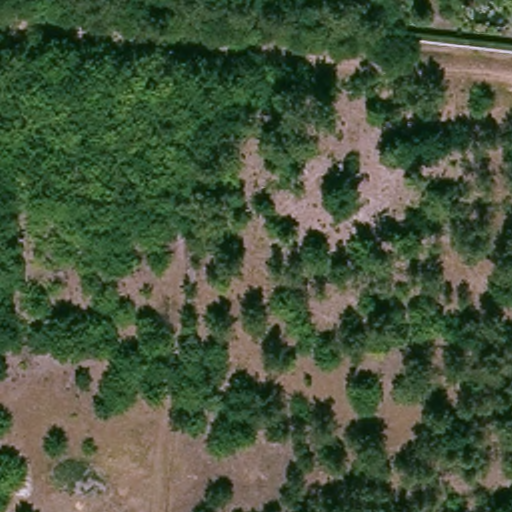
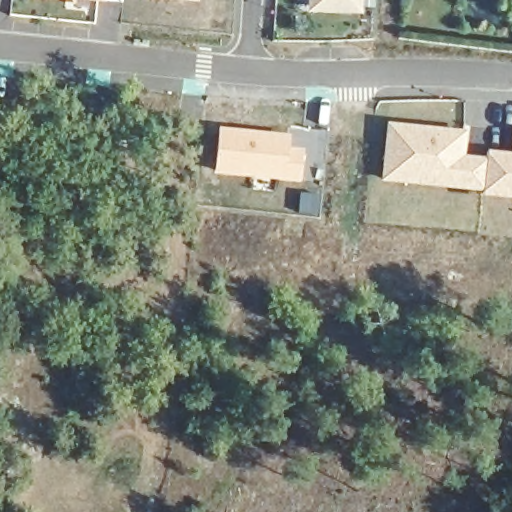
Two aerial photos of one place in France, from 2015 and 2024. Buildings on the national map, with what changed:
new [(105,1),(94,0),(106,0),(105,1)]
new [(174,0),(199,0),(198,2),(174,0)]
new [(310,0),(364,0),(363,10),(309,9),(310,0)]
new [(386,121),(467,129),(464,154),(485,157),(481,194),(465,190),(379,181),(386,121)]
new [(215,172),(219,127),(290,135),(288,149),(304,151),(302,182),(215,172)]
new [(485,157),(486,149),(510,152),(512,141),(512,199),(481,194),(485,157)]

